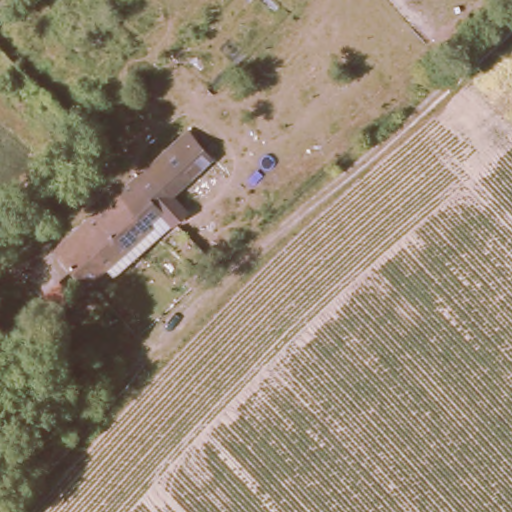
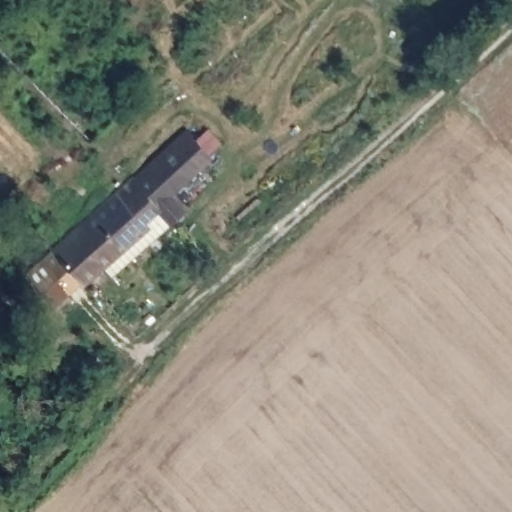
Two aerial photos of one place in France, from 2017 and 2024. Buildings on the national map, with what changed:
unchanged [(188,131),(213,157),(173,197),(187,212),(115,276),(106,267),(162,218),(158,213),(166,207),(140,178),(188,131)]
unchanged [(45,261),(140,178),(166,207),(158,213),(162,218),(106,267),(89,281),(77,267),(63,279),(75,294),(61,305),(33,271),(45,261)]

